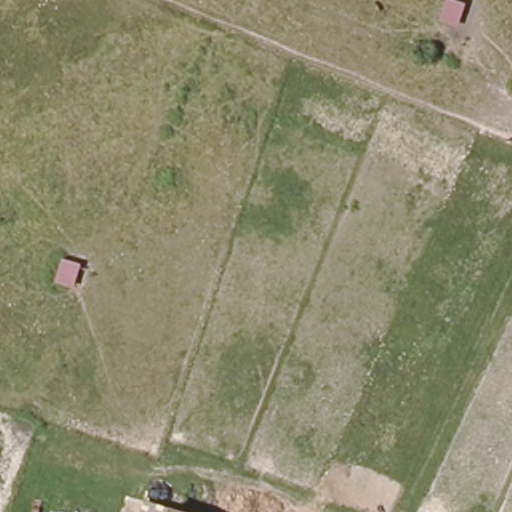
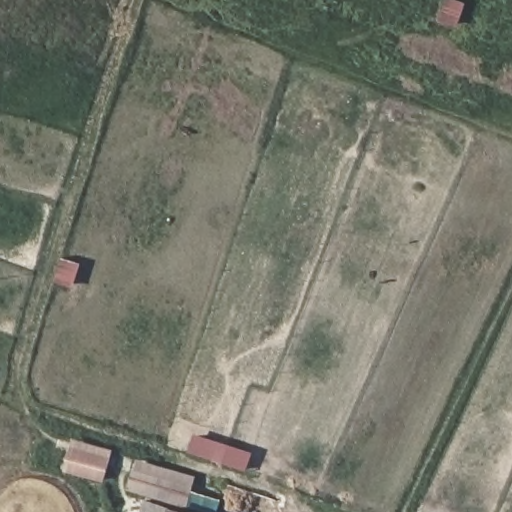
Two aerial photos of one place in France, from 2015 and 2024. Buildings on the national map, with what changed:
new [(62,471),(72,438),(112,449),(103,482),(62,471)]
new [(193,488),(192,492),(221,500),(218,512),(203,512),(126,490),(132,469),(193,488)]
unchanged [(153,505),(168,510),(174,512),(151,512),(153,505)]

